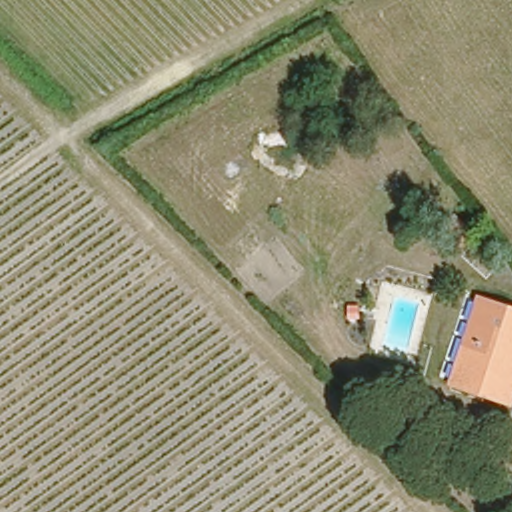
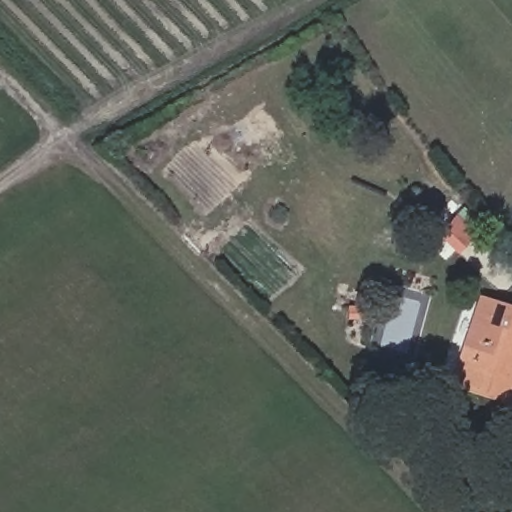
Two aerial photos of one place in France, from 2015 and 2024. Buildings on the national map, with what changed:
unchanged [(477,302),(512,313),(512,400),(451,379),(477,302)]

